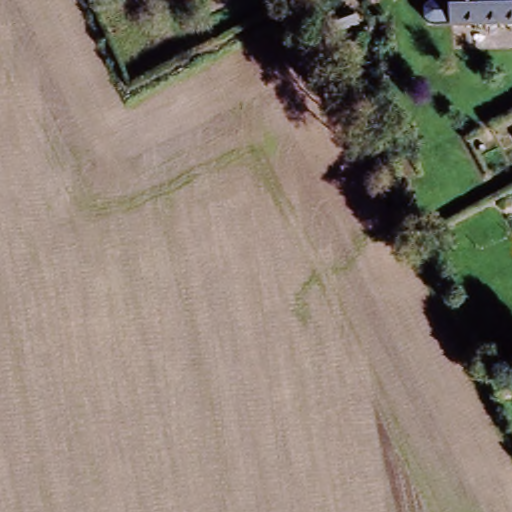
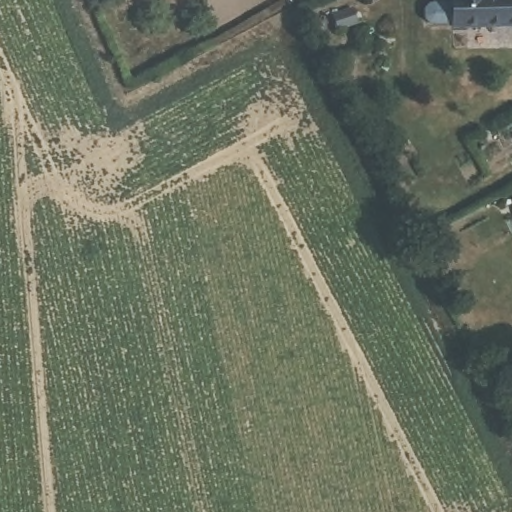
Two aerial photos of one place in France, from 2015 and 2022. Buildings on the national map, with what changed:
unchanged [(512,0),(512,31),(450,31),(445,0),(512,0)]

